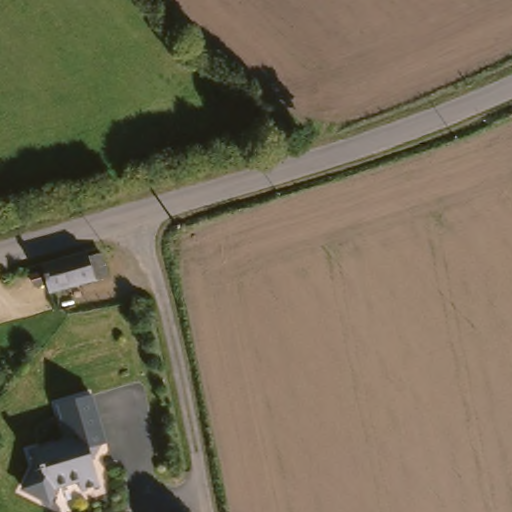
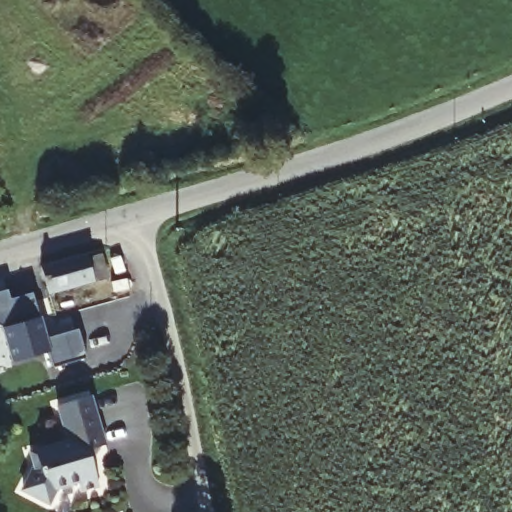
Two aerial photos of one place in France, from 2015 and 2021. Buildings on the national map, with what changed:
unchanged [(89,257),(102,253),(109,276),(50,293),(42,263),(86,249),(89,257)]
new [(87,356),(53,365),(49,351),(11,362),(2,328),(0,327),(0,290),(6,288),(9,299),(32,292),(46,338),(78,327),(87,356)]
unchanged [(92,456),(99,483),(82,487),(78,478),(57,484),(50,499),(24,485),(35,463),(30,448),(68,438),(57,402),(91,393),(101,429),(105,442),(100,444),(98,444),(92,456)]

